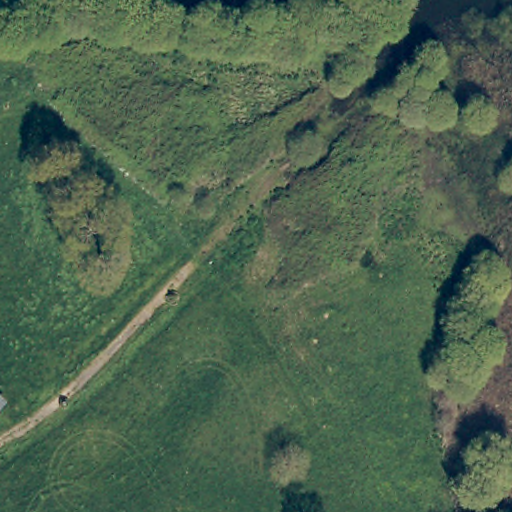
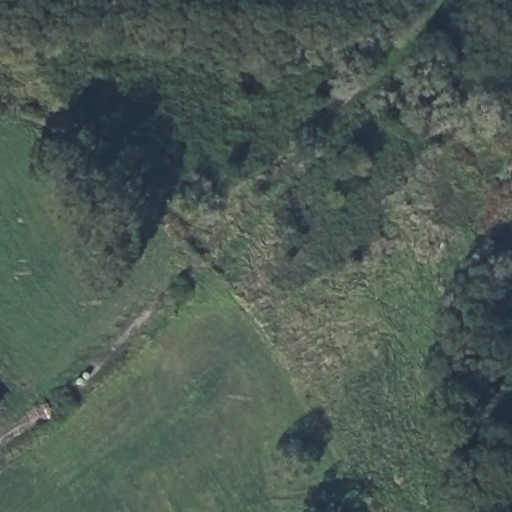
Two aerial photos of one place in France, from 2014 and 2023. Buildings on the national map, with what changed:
unchanged [(0,405),(0,401),(2,403),(0,405)]

